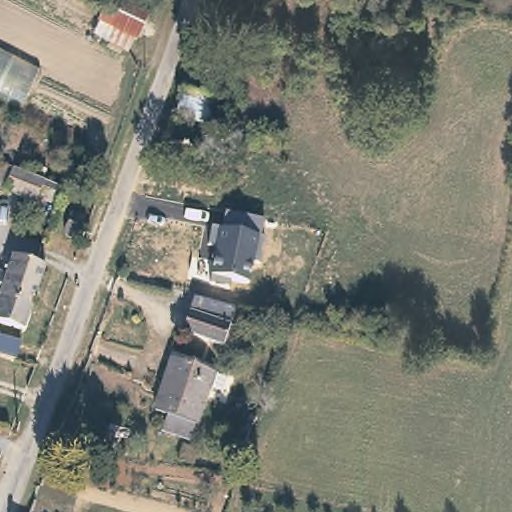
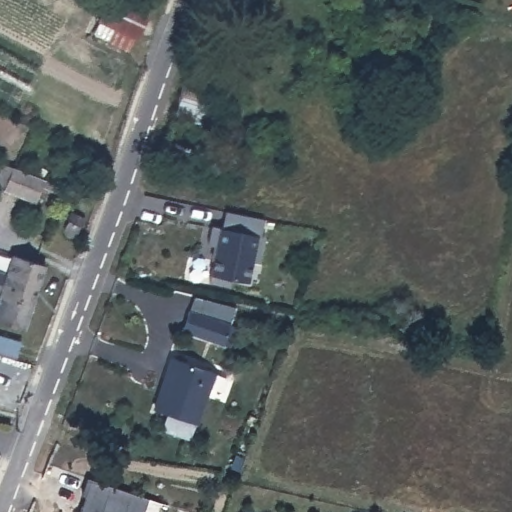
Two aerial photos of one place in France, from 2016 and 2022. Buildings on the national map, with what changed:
unchanged [(141,17),(128,42),(92,26),(104,0),(107,0),(141,17)]
unchanged [(164,145),(181,89),(215,101),(199,158),(164,145)]
unchanged [(55,193),(51,204),(33,196),(31,201),(1,189),(6,174),(55,193)]
unchanged [(265,220),(261,237),(265,238),(260,262),(253,261),(248,284),(211,276),(217,247),(208,244),(213,226),(222,228),(226,211),(265,220)]
unchanged [(76,226),(74,234),(69,238),(66,237),(61,231),(61,227),(66,221),(76,226)]
unchanged [(21,332),(0,325),(0,284),(10,255),(43,265),(21,332)]
unchanged [(227,335),(220,332),(181,321),(189,300),(226,315),(233,317),(227,335)]
unchanged [(210,375),(210,378),(222,382),(217,395),(205,391),(186,442),(160,433),(165,418),(153,414),(170,362),(210,375)]
new [(88,509),(91,498),(81,494),(86,478),(146,498),(141,512),(78,512),(80,506),(88,509)]

